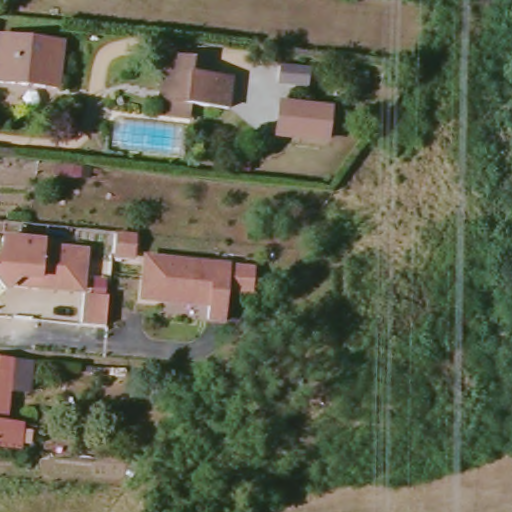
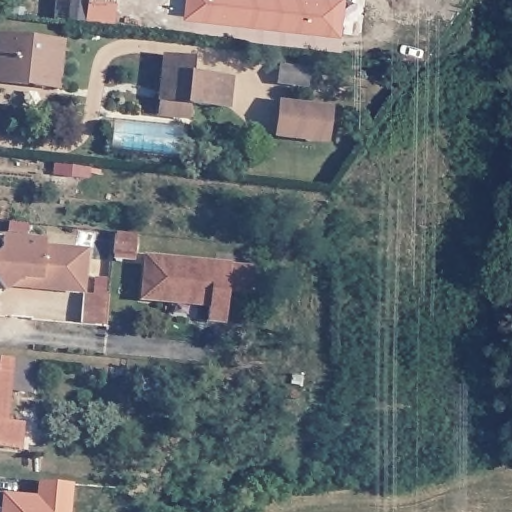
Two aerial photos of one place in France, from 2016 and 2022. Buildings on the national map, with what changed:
new [(187,0),(347,0),(343,35),(185,17),(187,0)]
unchanged [(53,90),(0,83),(0,37),(60,44),(53,90)]
unchanged [(151,51),(190,55),(187,75),(227,77),(225,110),(183,103),(185,121),(142,116),(151,51)]
unchanged [(310,90),(278,86),(280,64),(312,68),(310,90)]
unchanged [(331,145),(276,139),(280,102),(333,109),(331,145)]
unchanged [(46,243),(88,248),(83,288),(42,283),(42,276),(23,274),(9,286),(0,276),(0,251),(2,248),(4,234),(47,238),(46,243)]
unchanged [(138,237),(135,258),(116,256),(117,244),(118,234),(138,237)]
unchanged [(205,322),(207,307),(143,300),(148,259),(230,270),(255,273),(251,297),(227,294),(222,324),(205,322)]
unchanged [(111,298),(108,326),(85,323),(88,296),(111,298)]
unchanged [(40,392),(20,391),(16,428),(29,429),(28,453),(0,451),(0,358),(42,362),(40,392)]
new [(72,485),(70,512),(0,512),(2,493),(36,496),(37,480),(72,485)]

